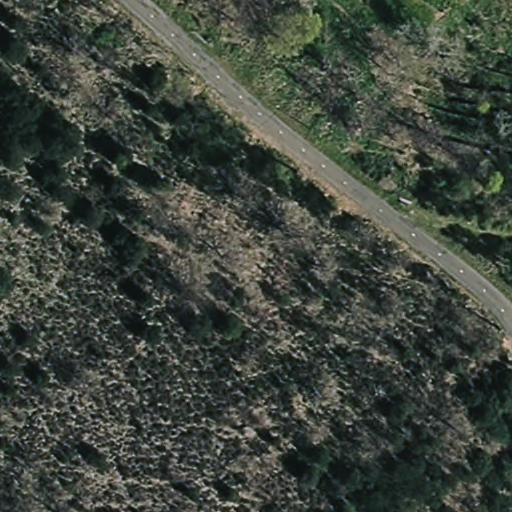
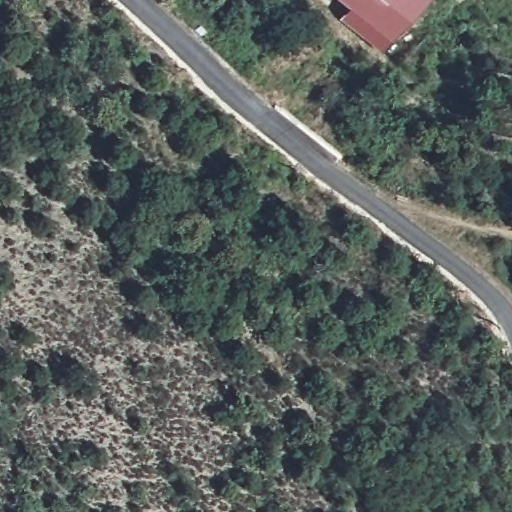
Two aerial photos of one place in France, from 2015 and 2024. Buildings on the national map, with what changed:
new [(381,56),(339,20),(349,10),(337,0),(426,0),(381,56)]

